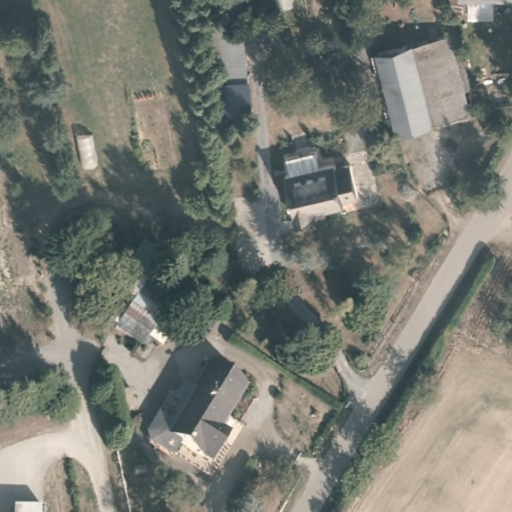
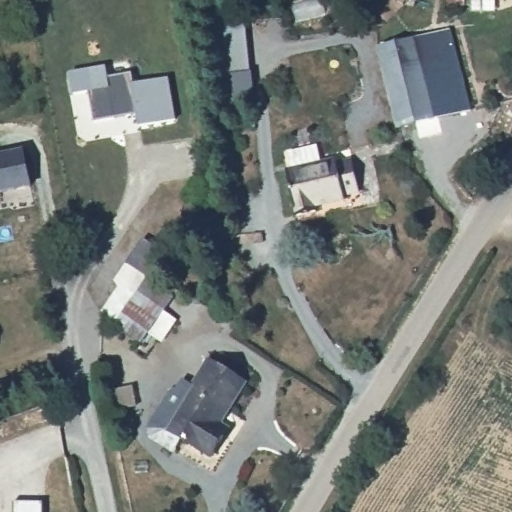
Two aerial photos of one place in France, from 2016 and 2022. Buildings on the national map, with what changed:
unchanged [(216,80),(211,19),(245,16),(252,77),(216,80)]
unchanged [(443,111),(420,34),(450,25),(473,102),(443,111)]
unchanged [(403,123),(388,69),(382,45),(420,34),(443,111),(403,123)]
new [(139,130),(136,115),(93,122),(89,94),(73,96),(68,73),(107,66),(109,78),(131,74),(133,83),(169,76),(177,121),(139,130)]
unchanged [(345,198),(347,203),(318,210),(319,216),(299,221),(286,174),(289,174),(285,157),(314,149),(317,165),(335,161),(337,165),(352,161),(361,193),(345,198)]
new [(32,188),(11,192),(10,189),(0,191),(0,158),(25,153),(32,188)]
unchanged [(151,336),(146,345),(104,320),(131,266),(179,294),(170,307),(182,317),(164,343),(151,336)]
unchanged [(168,447),(165,439),(168,431),(170,427),(186,393),(192,395),(198,385),(212,391),(224,369),(258,386),(238,426),(233,435),(240,439),(231,458),(203,444),(194,461),(173,450),(168,447)]
unchanged [(16,503),(43,503),(43,512),(16,512),(16,503)]

